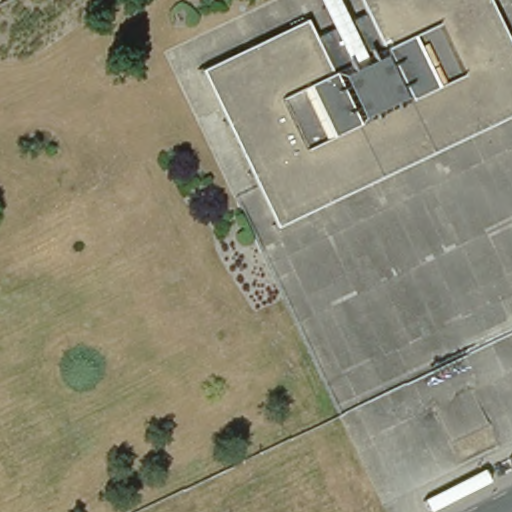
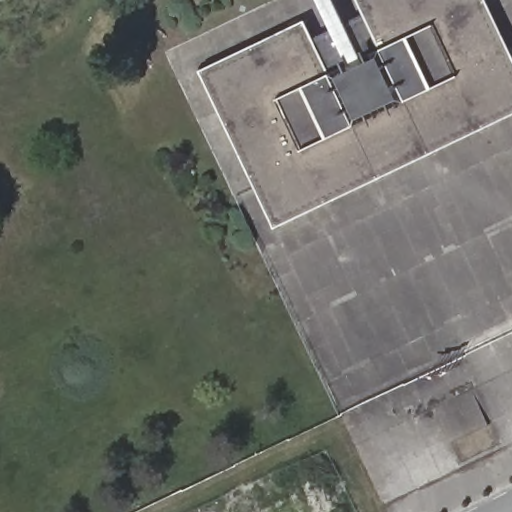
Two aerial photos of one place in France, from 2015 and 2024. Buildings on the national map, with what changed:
unchanged [(284,201),(509,92),(465,0),(487,0),(512,51),(512,113),(291,220),(275,227),(199,69),(218,60),(305,19),(312,37),(226,79),(284,201)]
unchanged [(390,0),(465,0),(509,92),(284,201),(226,79),(312,37),(332,28),(345,21),(363,13),(390,0)]
unchanged [(332,28),(318,0),(335,0),(345,21),(332,28)]
unchanged [(357,0),(390,0),(363,13),(357,0)]

